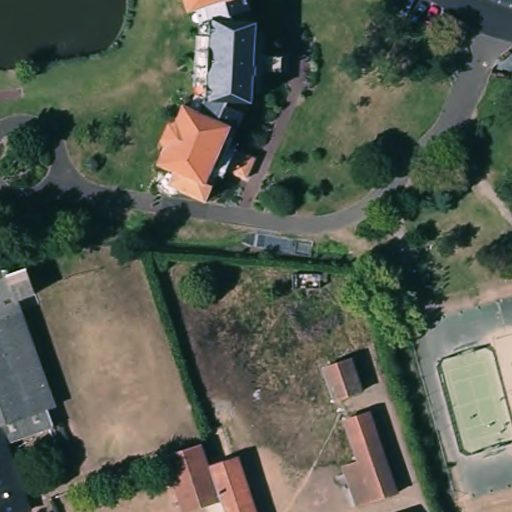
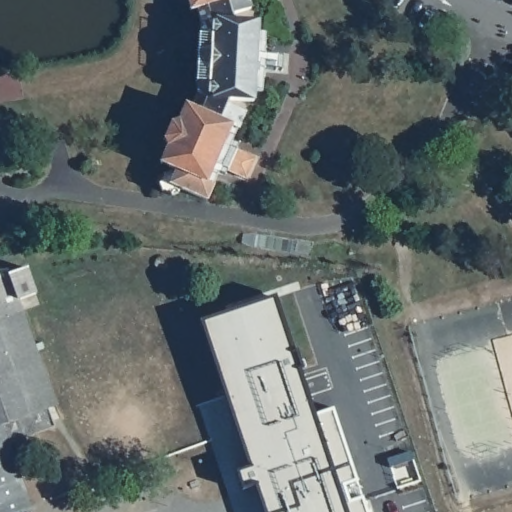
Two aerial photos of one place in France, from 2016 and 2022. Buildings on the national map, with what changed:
unchanged [(180,171),(171,167),(165,164),(171,148),(168,140),(173,128),(175,124),(183,120),(190,104),(195,106),(206,112),(212,99),(213,83),(202,82),(203,59),(204,35),(217,35),(218,20),(214,6),(202,9),(196,11),(193,0),(252,0),(256,9),(238,14),(241,23),(263,24),(258,100),(235,99),(232,106),(250,114),(243,129),(237,126),(231,142),(229,141),(217,168),(219,169),(211,185),(218,187),(211,200),(186,189),(184,192),(175,196),(169,194),(167,192),(163,185),(167,176),(174,173),(178,175),(180,171)]
unchanged [(260,158),(251,179),(233,170),(241,150),(260,158)]
demolished [(317,259),(316,274),(291,273),(291,257),(317,259)]
unchanged [(27,266),(37,294),(18,299),(24,312),(0,321),(0,269),(27,266)]
new [(274,296),(313,412),(332,406),(366,512),(266,512),(256,482),(243,486),(239,471),(251,467),(203,321),(274,296)]
unchanged [(58,406),(51,411),(55,428),(11,444),(34,511),(31,512),(0,512),(0,321),(24,312),(58,406)]
demolished [(346,361),(357,393),(329,402),(319,370),(346,361)]
demolished [(362,458),(350,418),(374,410),(401,490),(361,503),(348,463),(362,458)]
demolished [(221,431),(230,457),(213,462),(205,437),(221,431)]
demolished [(203,446),(210,468),(222,504),(203,511),(200,512),(183,512),(165,459),(203,446)]
demolished [(210,468),(238,459),(255,512),(224,512),(222,504),(210,468)]

